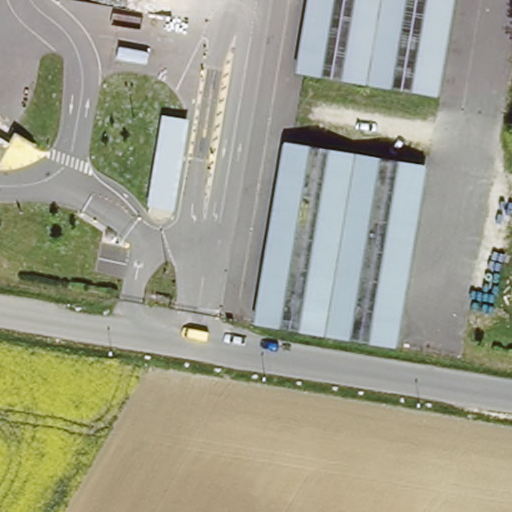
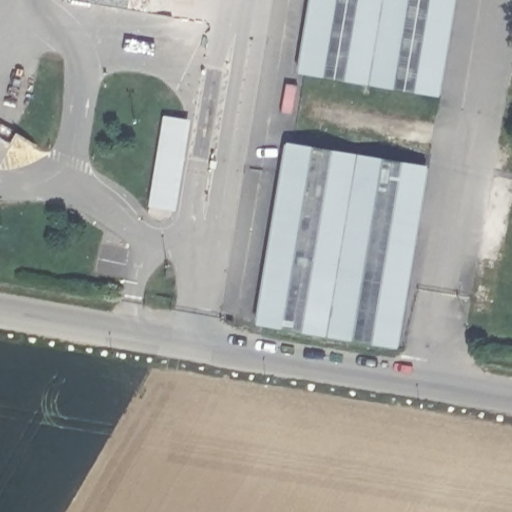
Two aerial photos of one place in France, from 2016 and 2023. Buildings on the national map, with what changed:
unchanged [(439,102),(296,78),(309,0),(457,0),(439,102)]
unchanged [(188,121),(174,211),(147,207),(160,116),(188,121)]
unchanged [(397,356),(255,330),(263,278),(287,145),(430,168),(402,320),(397,356)]

